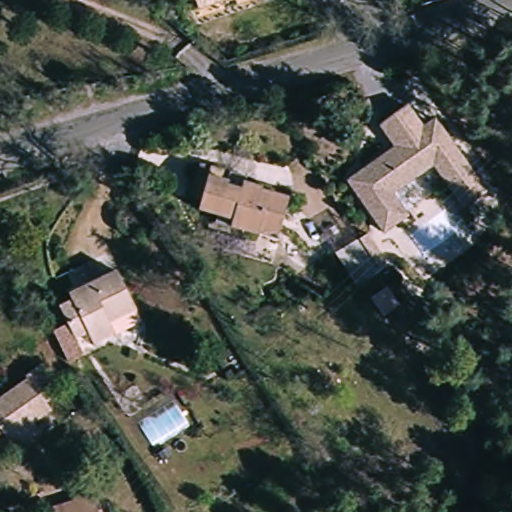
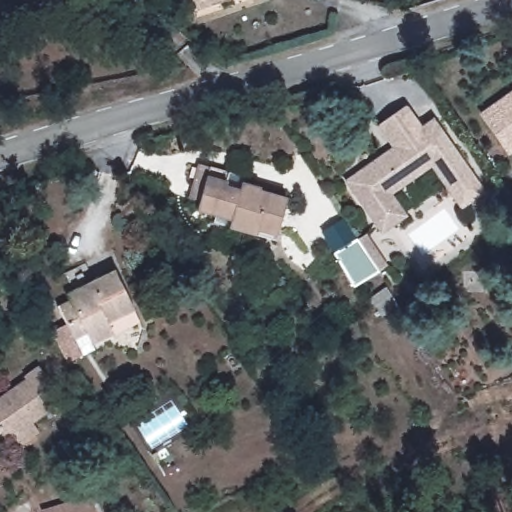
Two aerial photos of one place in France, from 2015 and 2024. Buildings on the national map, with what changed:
unchanged [(193,0),(236,0),(197,12),(193,0)]
new [(478,114),(512,91),(512,154),(509,156),(478,114)]
unchanged [(411,126),(423,117),(477,185),(473,189),(457,202),(425,162),(385,194),(402,215),(379,233),(340,183),(411,126)]
unchanged [(205,215),(207,206),(197,203),(200,192),(207,171),(216,173),(233,179),(232,180),(247,183),(246,187),(266,192),(266,195),(290,202),(279,243),(235,231),(220,227),(222,219),(205,215)]
unchanged [(331,259),(350,246),(358,240),(365,251),(380,271),(372,277),(353,290),(331,259)]
unchanged [(113,336),(91,345),(86,337),(74,341),(61,310),(71,305),(73,304),(71,296),(79,292),(86,290),(92,287),(120,274),(137,315),(141,324),(113,336)]
unchanged [(14,455),(7,447),(0,439),(0,405),(25,384),(24,382),(36,373),(61,406),(49,415),(55,423),(14,455)]
unchanged [(87,493),(93,512),(44,512),(43,507),(87,493)]

